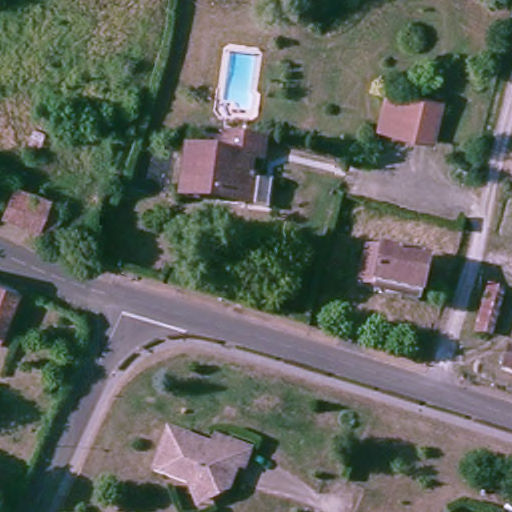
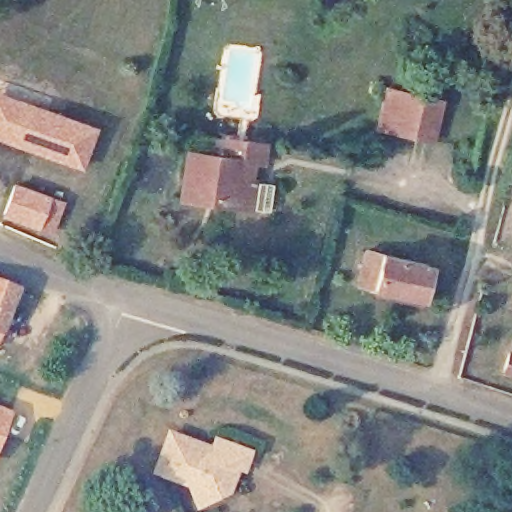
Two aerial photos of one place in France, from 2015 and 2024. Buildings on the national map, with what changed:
unchanged [(432,141),(392,133),(381,131),(390,91),(402,94),(441,102),(432,141)]
new [(98,127),(82,170),(0,141),(0,92),(98,127)]
unchanged [(250,206),(200,199),(181,197),(187,148),(222,153),(225,136),(263,141),(260,159),(251,158),(247,178),(255,179),(250,206)]
unchanged [(52,233),(2,215),(14,183),(64,201),(52,233)]
unchanged [(422,301),(358,287),(367,253),(429,268),(422,301)]
demolished [(512,272),(512,293),(506,292),(492,337),(473,332),(487,287),(478,284),(483,265),(512,272)]
unchanged [(17,289),(1,335),(0,337),(0,283),(17,289)]
unchanged [(509,349),(512,349),(512,371),(502,368),(509,349)]
new [(14,412),(0,444),(0,406),(14,412)]
unchanged [(189,490),(155,478),(170,439),(212,455),(216,445),(231,451),(251,458),(244,476),(237,473),(229,497),(209,506),(199,511),(189,490)]

